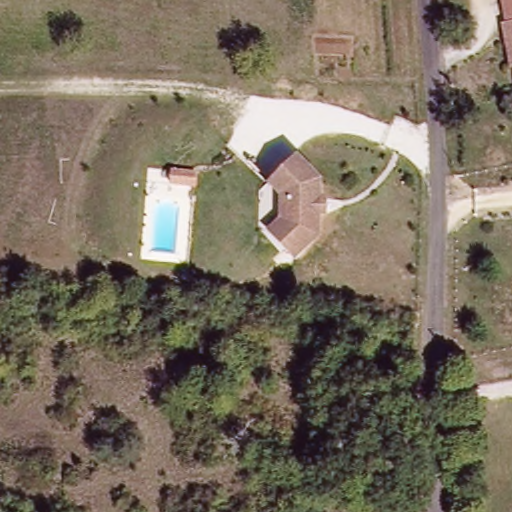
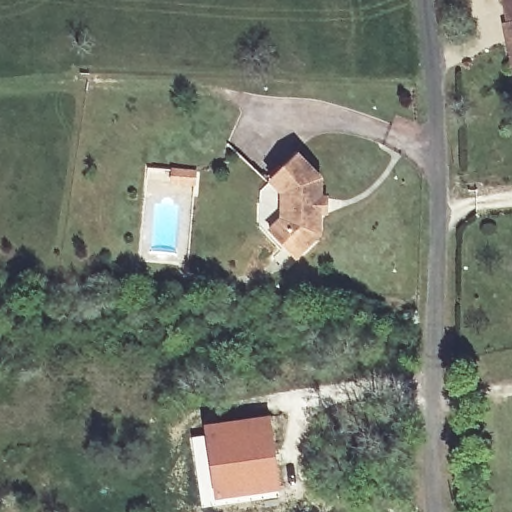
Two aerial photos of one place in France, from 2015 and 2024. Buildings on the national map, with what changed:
unchanged [(497,15),(504,14),(501,0),(512,0),(512,58),(505,59),(500,30),(497,15)]
unchanged [(285,220),(285,194),(273,182),(301,156),(325,180),(324,199),(330,199),(330,215),(323,214),(323,235),(300,259),(284,245),(272,233),(285,220)]
unchanged [(188,171),(187,183),(164,181),(165,169),(188,171)]
new [(278,492),(214,500),(202,426),(269,416),(278,492)]

